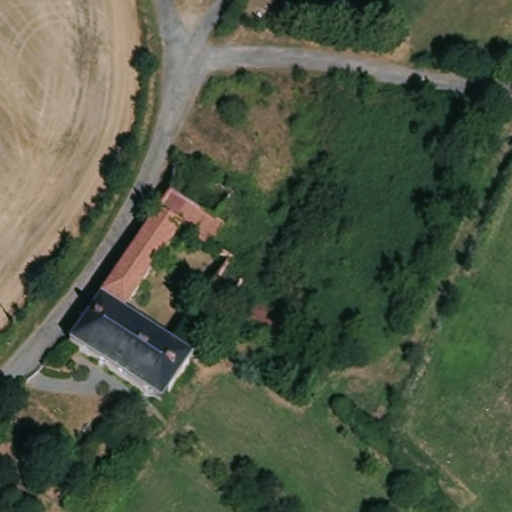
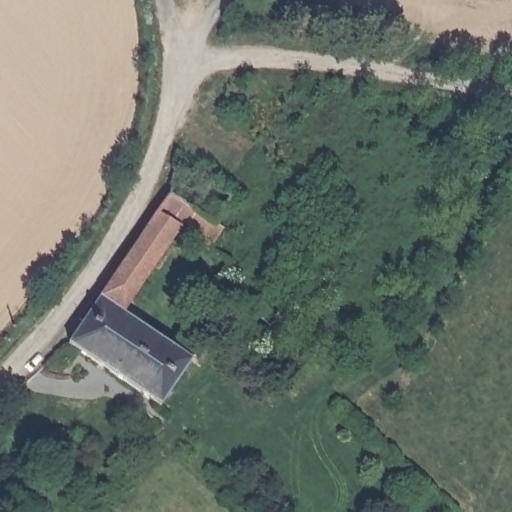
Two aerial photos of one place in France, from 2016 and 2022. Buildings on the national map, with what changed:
unchanged [(171,193),(171,192),(172,185),(179,153),(282,226),(242,287),(287,326),(282,332),(270,345),(258,333),(230,306),(162,406),(69,344),(171,193)]

